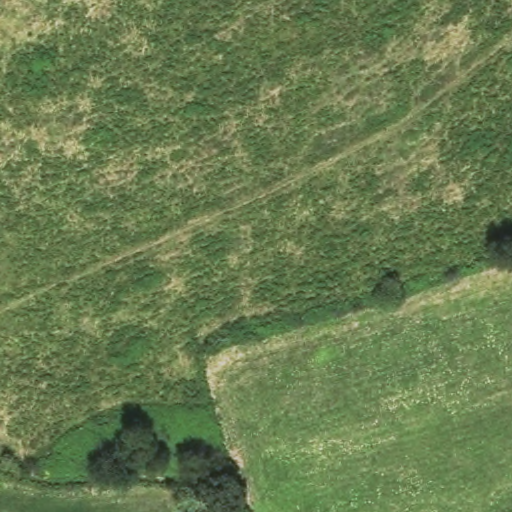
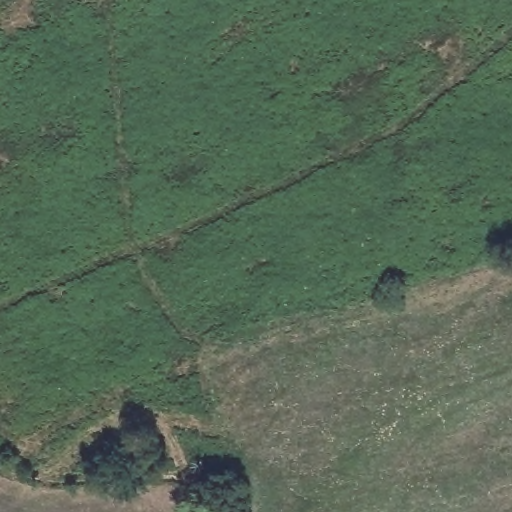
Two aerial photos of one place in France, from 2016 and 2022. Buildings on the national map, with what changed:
[]

